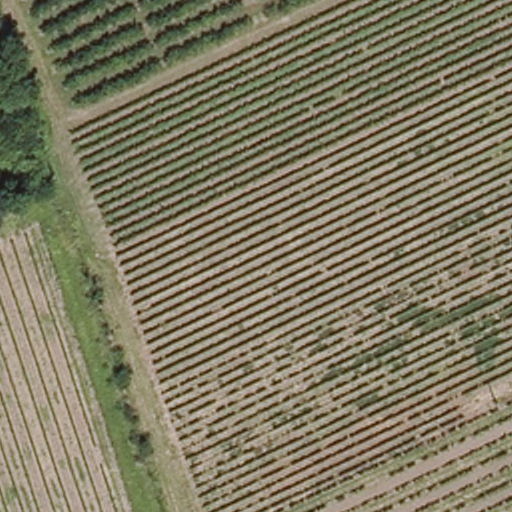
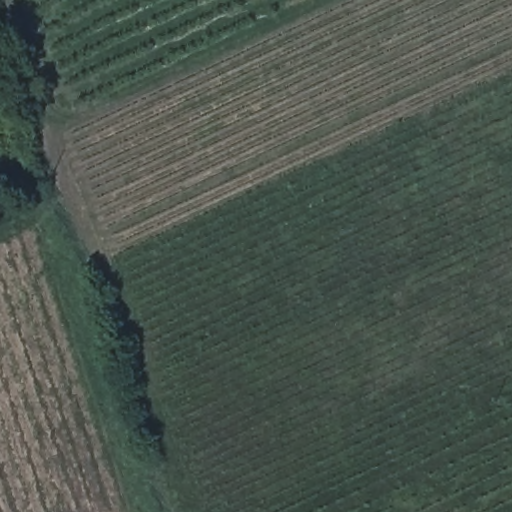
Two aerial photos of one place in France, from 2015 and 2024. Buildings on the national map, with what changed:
[]

